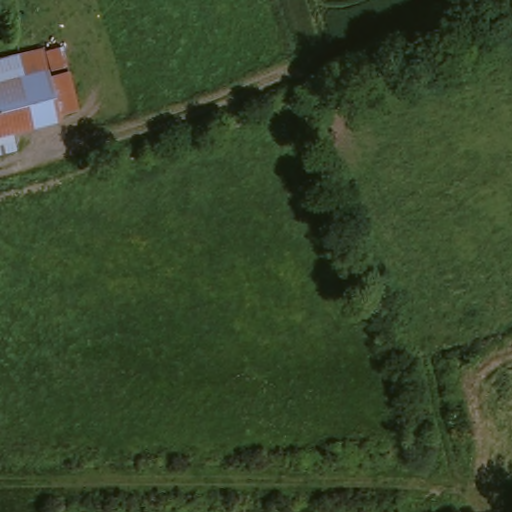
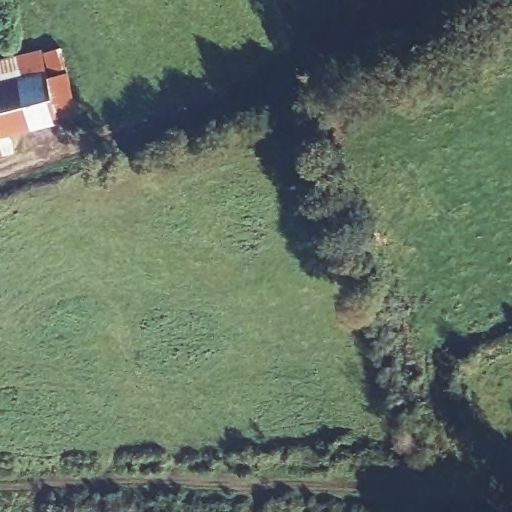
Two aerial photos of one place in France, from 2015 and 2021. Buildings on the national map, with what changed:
unchanged [(78,110),(61,115),(63,122),(14,132),(18,152),(0,156),(0,57),(63,44),(78,110)]

